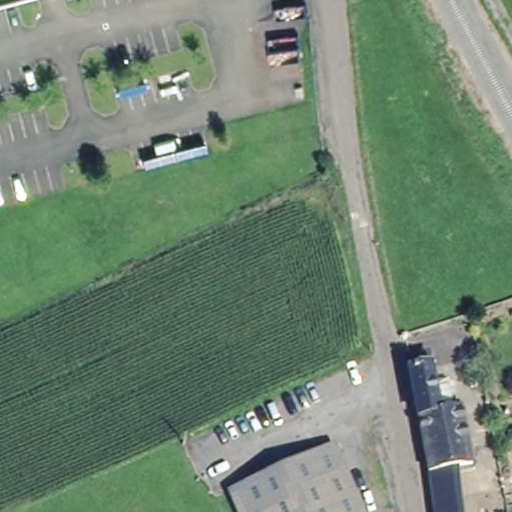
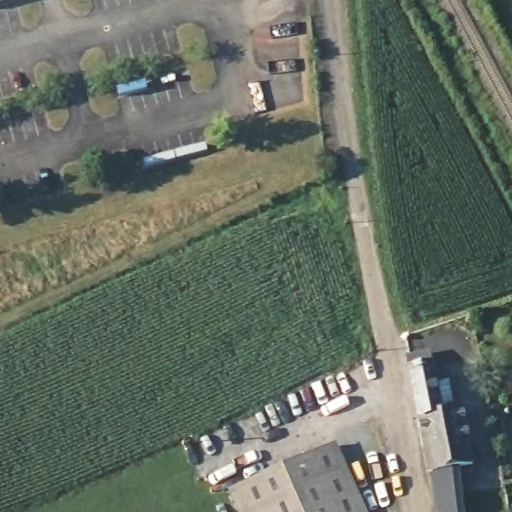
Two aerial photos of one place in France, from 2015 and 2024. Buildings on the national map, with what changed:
unchanged [(408,358),(430,355),(442,415),(462,411),(472,467),(455,471),(430,476),(408,358)]
unchanged [(368,512),(367,512),(242,512),(232,488),(335,441),(368,512)]
unchanged [(430,476),(455,471),(462,512),(436,512),(430,476)]

